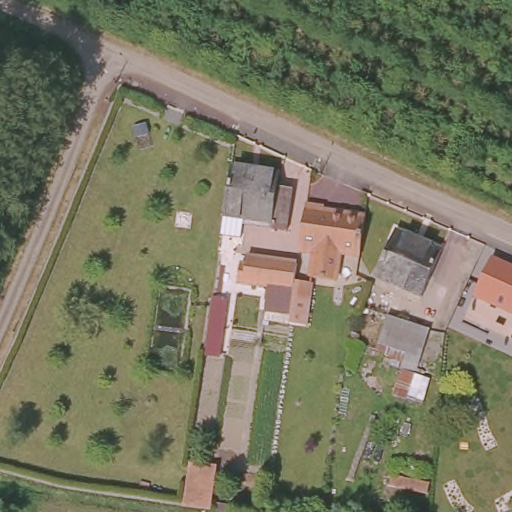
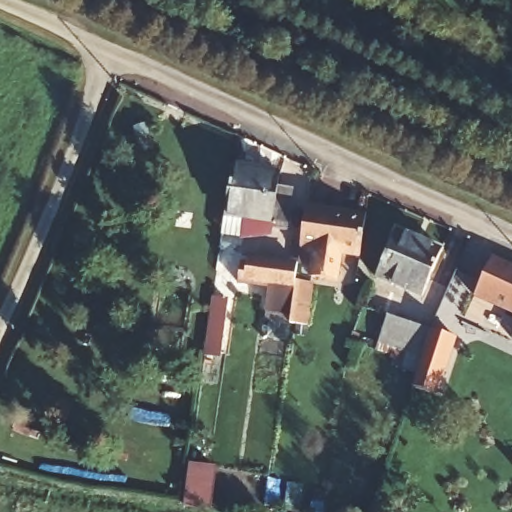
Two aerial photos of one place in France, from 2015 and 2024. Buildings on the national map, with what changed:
unchanged [(281,171),(279,184),(294,186),(289,227),(271,225),(272,219),(243,215),(240,235),(220,231),(230,165),(281,171)]
unchanged [(327,214),(327,217),(369,223),(363,261),(345,259),(340,285),(315,281),(319,255),(304,254),(310,211),(327,214)]
unchanged [(440,252),(421,297),(375,277),(395,232),(440,252)]
unchanged [(497,250),(512,256),(512,301),(480,285),(497,250)]
unchanged [(311,331),(294,328),(295,320),(269,316),(272,293),(243,290),(246,272),(250,272),(251,263),(302,270),(301,275),(300,286),(317,289),(311,331)]
unchanged [(227,301),(227,306),(220,356),(204,354),(212,299),(227,301)]
unchanged [(433,331),(417,372),(391,362),(395,355),(378,347),(392,315),(433,331)]
unchanged [(464,335),(471,318),(480,322),(480,320),(512,334),(512,357),(464,335)]
unchanged [(214,470),(207,511),(182,507),(188,465),(214,470)]
unchanged [(232,506),(231,512),(216,512),(212,511),(213,503),(232,506)]

